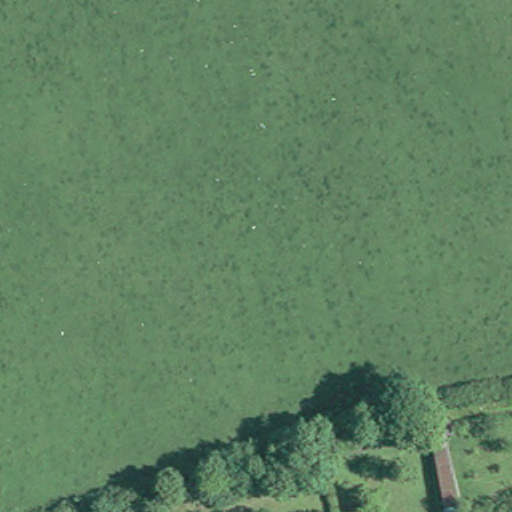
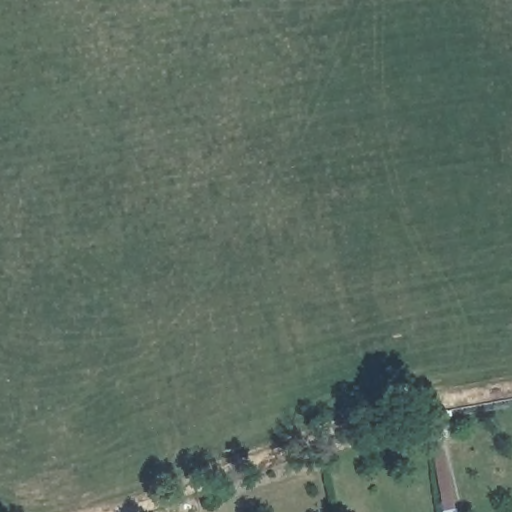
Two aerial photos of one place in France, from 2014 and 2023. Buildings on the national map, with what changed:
unchanged [(430,410),(445,407),(451,433),(430,437),(425,411),(430,410)]

